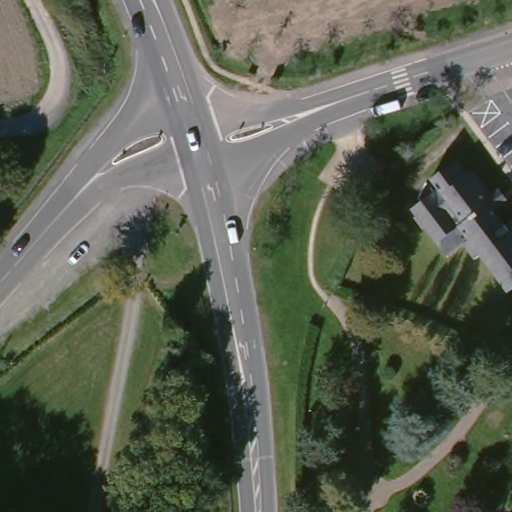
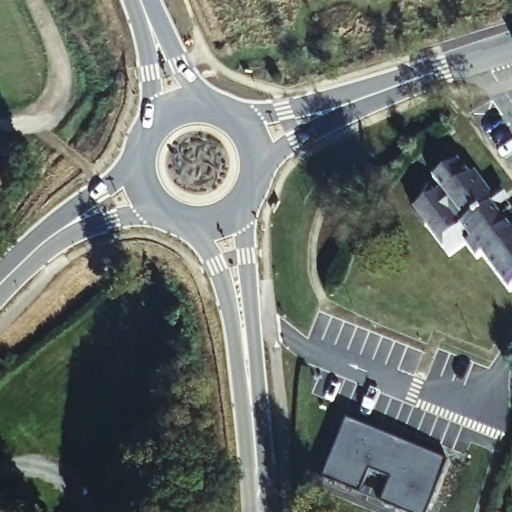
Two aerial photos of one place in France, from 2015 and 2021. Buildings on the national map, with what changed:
unchanged [(472,234),(466,239),(450,250),(442,240),(413,200),(439,180),(434,174),(457,156),(468,170),(474,166),(491,189),(499,184),(507,196),(494,205),(500,213),(472,234)]
unchanged [(510,225),(512,224),(512,284),(510,285),(483,249),(477,253),(466,239),(472,234),(500,213),(510,225)]
new [(459,457),(437,512),(387,512),(314,485),(344,415),(459,457)]

